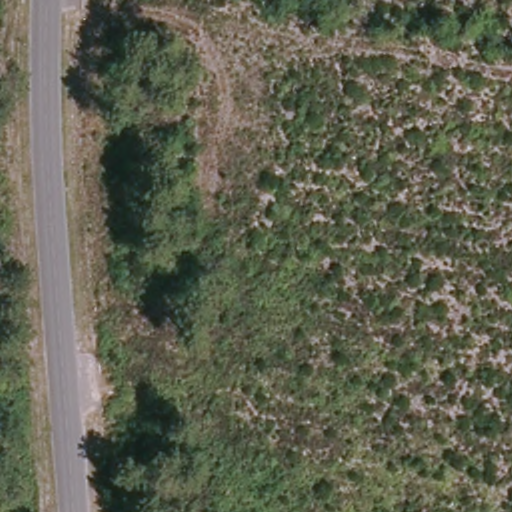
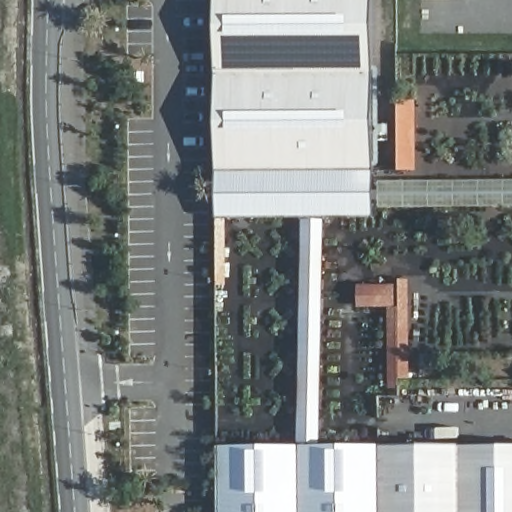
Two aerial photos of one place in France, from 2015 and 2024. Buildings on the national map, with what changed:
new [(375,173),(217,173),(215,0),(374,0),(375,173)]
new [(217,173),(375,173),(376,220),(325,220),(304,220),(217,221),(217,173)]
new [(304,220),(325,220),(320,448),(299,448),(304,220)]
new [(394,289),(394,306),(364,307),(364,289),(394,289)]
new [(320,448),(512,447),(512,512),(218,512),(218,449),(299,448),(320,448)]

